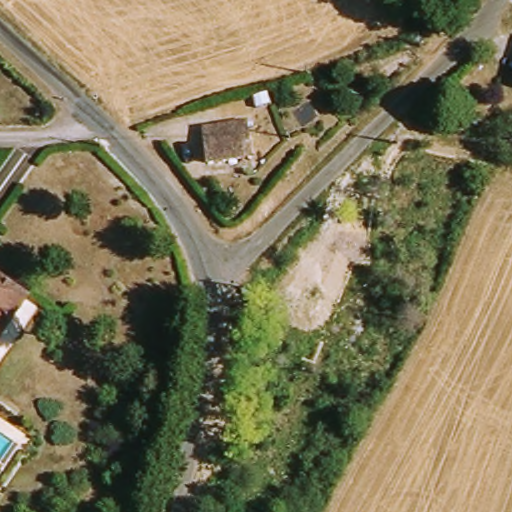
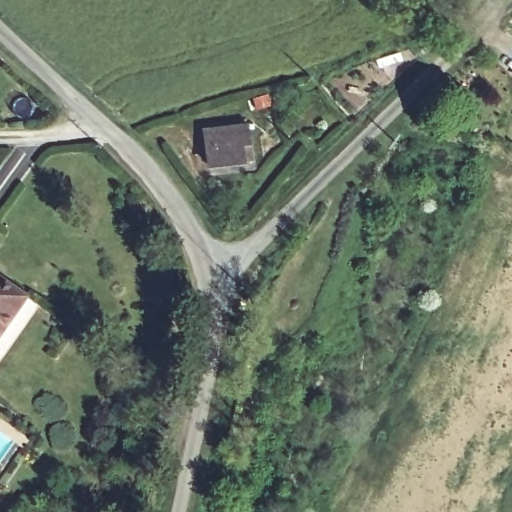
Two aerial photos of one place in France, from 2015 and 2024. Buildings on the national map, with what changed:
unchanged [(205,159),(207,128),(244,126),(245,159),(205,159)]
unchanged [(0,342),(0,283),(27,303),(0,342)]

